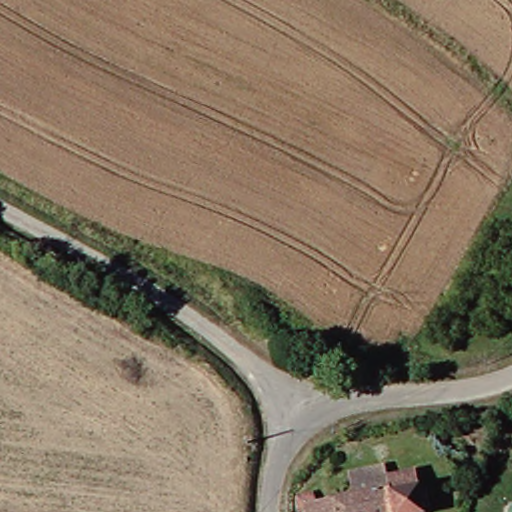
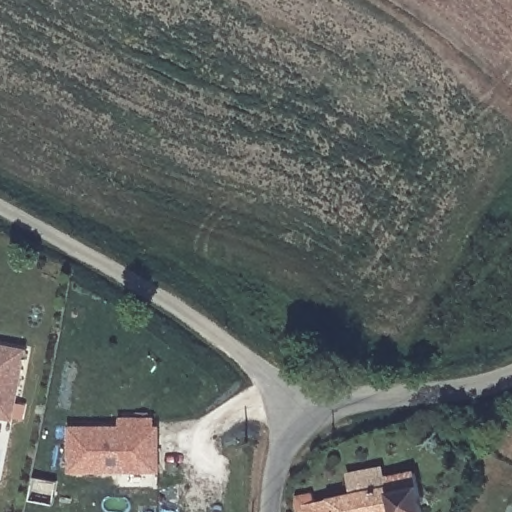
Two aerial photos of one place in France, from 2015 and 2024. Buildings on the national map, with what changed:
new [(14,423),(0,419),(0,344),(29,350),(14,423)]
new [(120,418),(156,418),(156,427),(160,427),(160,474),(68,473),(67,426),(120,427),(120,418)]
unchanged [(416,512),(386,512),(381,490),(380,478),(409,474),(416,512)]
unchanged [(300,512),(298,503),(381,490),(386,512),(300,512)]

